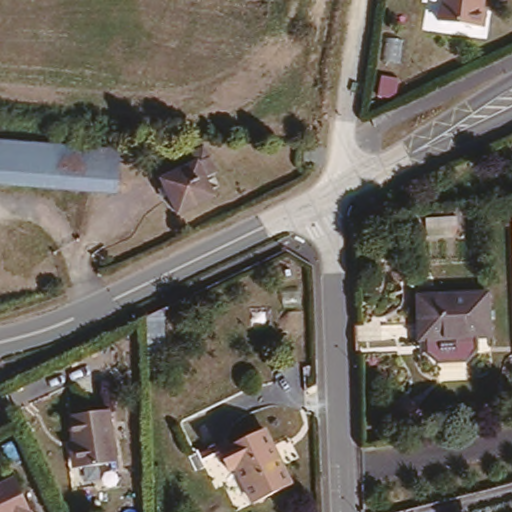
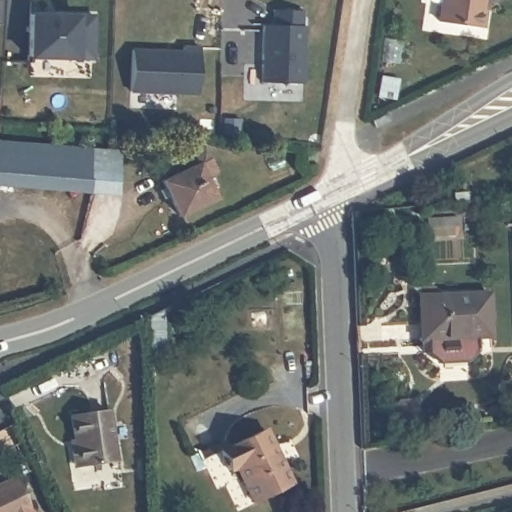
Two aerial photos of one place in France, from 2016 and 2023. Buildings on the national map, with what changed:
new [(258,70),(259,12),(269,12),(269,0),(299,0),(299,13),(301,13),(301,70),(258,70)]
unchanged [(484,8),(488,8),(484,26),(440,20),(444,0),(486,0),(484,8)]
new [(28,5),(90,6),(89,48),(28,47),(28,5)]
new [(127,43),(179,42),(179,37),(196,37),(196,83),(128,84),(127,43)]
unchanged [(60,140),(58,172),(0,169),(0,135),(59,135),(60,140)]
unchanged [(122,144),(121,177),(58,172),(60,140),(122,144)]
unchanged [(209,147),(218,162),(205,168),(215,189),(184,205),(162,169),(209,147)]
unchanged [(491,326),(477,327),(477,342),(469,354),(434,357),(422,347),(413,347),(415,331),(414,306),(413,290),(487,287),(491,326)]
unchanged [(67,430),(79,430),(78,406),(114,403),(115,457),(81,460),(68,459),(67,430)]
unchanged [(267,421),(296,476),(258,492),(244,466),(231,473),(216,446),(267,421)]
unchanged [(0,512),(0,475),(13,469),(34,512),(0,512)]

